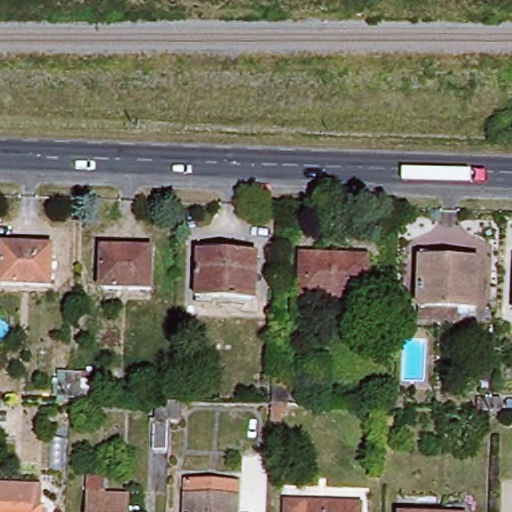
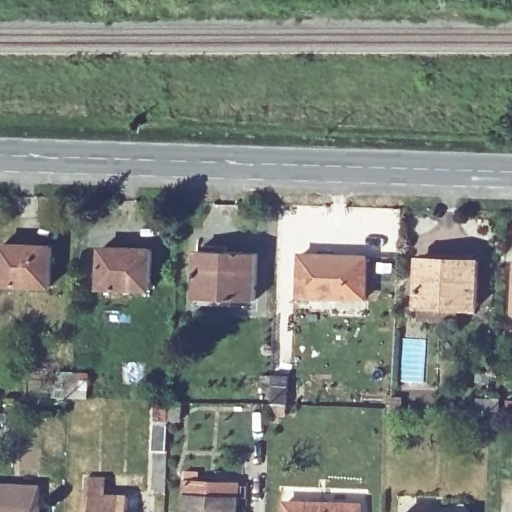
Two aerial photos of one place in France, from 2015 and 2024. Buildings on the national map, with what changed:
unchanged [(510,139),(496,139),(496,124),(511,125),(510,139)]
unchanged [(5,284),(7,244),(39,245),(57,246),(57,253),(55,286),(5,284)]
unchanged [(200,305),(200,297),(202,250),(202,244),(232,246),(232,252),(262,253),(260,300),(260,307),(200,305)]
unchanged [(105,288),(106,248),(138,248),(156,249),(156,255),(155,289),(105,288)]
unchanged [(422,317),(423,306),(425,258),(425,253),(468,255),(468,260),(483,261),(481,309),(462,308),(462,319),(422,317)]
unchanged [(371,298),(304,296),(306,254),(372,256),(371,298)]
unchanged [(88,398),(73,397),(69,397),(57,397),(58,371),(74,372),(88,372),(88,398)]
unchanged [(278,416),(278,422),(272,422),(272,403),(273,375),(289,375),(303,376),(302,405),(288,404),(287,417),(278,416)]
unchanged [(404,408),(391,408),(391,396),(404,397),(404,408)]
unchanged [(492,400),(492,410),(489,410),(477,410),(477,399),(492,400)]
unchanged [(167,420),(166,451),(153,451),(156,400),(169,401),(182,401),(181,421),(168,420),(167,420)]
unchanged [(133,512),(90,512),(91,493),(91,477),(110,478),(109,496),(133,496),(133,512)]
unchanged [(191,482),(242,484),(241,512),(190,512),(191,482)]
unchanged [(44,512),(0,512),(0,484),(46,486),(44,512)]
unchanged [(365,512),(290,512),(290,502),(365,505),(365,512)]
unchanged [(469,512),(450,512),(469,508),(469,512)]

